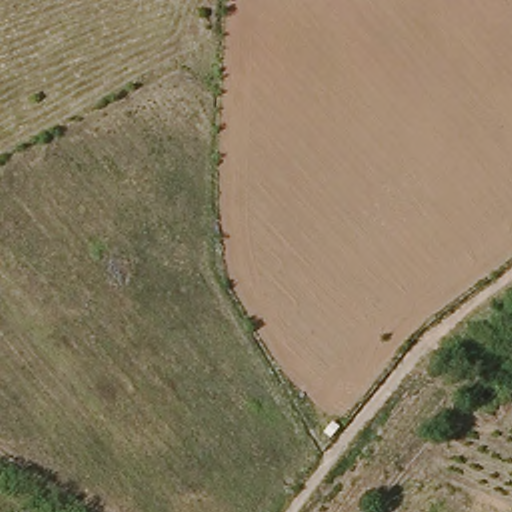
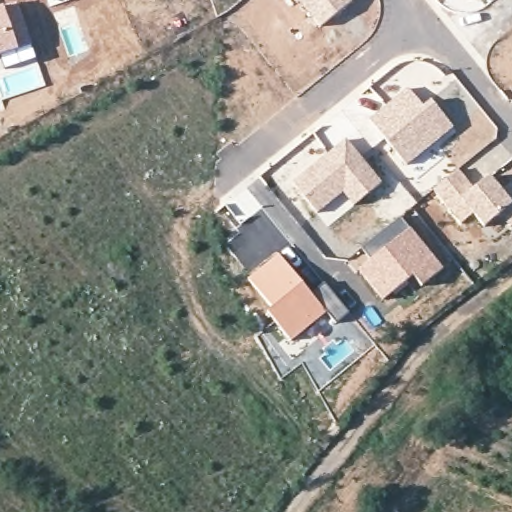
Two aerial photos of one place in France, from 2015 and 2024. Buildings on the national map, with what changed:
new [(318,27),(297,0),(353,0),(354,1),(318,27)]
new [(0,59),(19,52),(4,6),(18,2),(37,61),(4,71),(0,60),(0,59)]
new [(4,6),(19,52),(0,59),(0,7),(4,6)]
new [(407,87),(423,106),(431,100),(454,127),(404,165),(368,118),(407,87)]
new [(319,159),(346,138),(382,182),(353,205),(343,194),(317,214),(291,184),(319,159)]
new [(484,228),(473,215),(460,225),(431,190),(458,167),(473,185),(488,174),(507,194),(512,190),(512,225),(493,239),(484,228)]
new [(362,249),(400,217),(408,227),(444,269),(421,287),(413,277),(382,300),(357,268),(369,257),(362,249)]
new [(349,312),(337,322),(328,312),(290,341),(266,312),(270,308),(246,278),(276,252),(312,294),(324,284),(349,312)]

